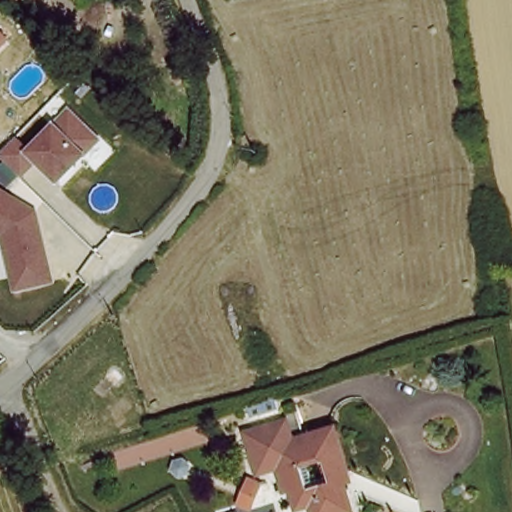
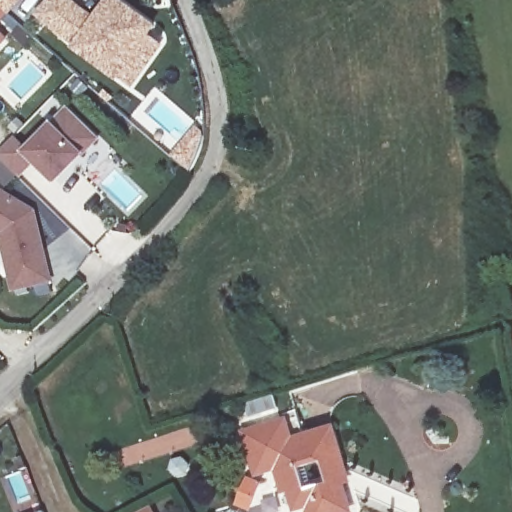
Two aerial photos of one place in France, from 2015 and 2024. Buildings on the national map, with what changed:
new [(0,22),(0,0),(21,0),(0,22)]
new [(48,0),(75,0),(95,17),(107,0),(122,0),(158,26),(151,36),(165,45),(132,89),(118,81),(73,47),(35,15),(48,0)]
new [(0,47),(0,32),(8,39),(0,47)]
demolished [(0,45),(0,35),(5,40),(0,45)]
unchanged [(30,150),(70,107),(103,141),(62,187),(40,166),(23,180),(0,158),(0,153),(16,137),(30,150)]
unchanged [(53,284),(13,292),(1,238),(0,237),(0,189),(38,212),(53,284)]
unchanged [(274,465),(255,470),(243,428),(285,417),(291,437),(336,427),(346,463),(343,475),(353,508),(340,512),(318,512),(316,506),(299,503),(285,507),(279,486),(274,465)]

